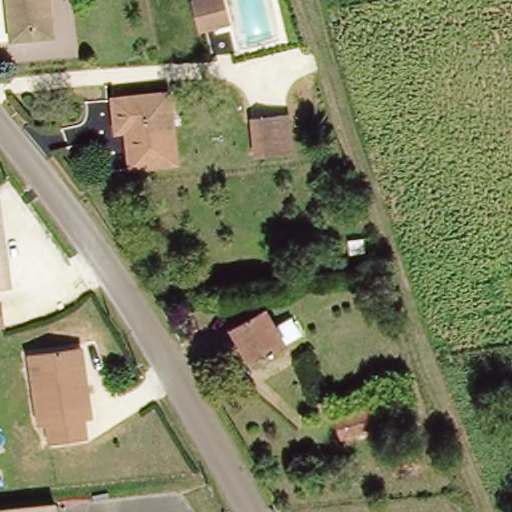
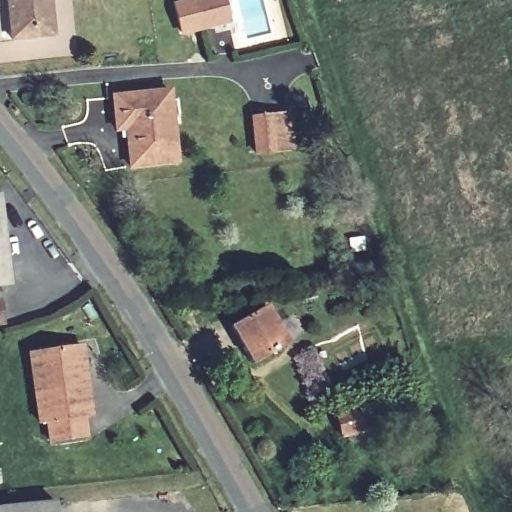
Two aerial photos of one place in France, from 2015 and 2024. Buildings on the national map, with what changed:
unchanged [(9,0),(55,0),(58,36),(50,37),(12,38),(9,0)]
unchanged [(201,30),(193,0),(228,0),(234,21),(201,30)]
unchanged [(128,132),(119,134),(114,96),(170,89),(179,160),(133,166),(128,132)]
unchanged [(290,123),(292,144),(257,147),(255,125),(290,123)]
unchanged [(3,195),(14,284),(0,286),(0,195),(3,195)]
unchanged [(6,297),(9,320),(0,321),(0,298),(6,297)]
unchanged [(270,315),(282,347),(248,360),(236,327),(270,315)]
unchanged [(85,348),(96,416),(88,417),(89,438),(50,441),(46,422),(39,424),(29,354),(85,348)]
unchanged [(376,391),(382,416),(351,422),(347,397),(376,391)]
unchanged [(56,500),(58,512),(0,512),(0,507),(56,500)]

